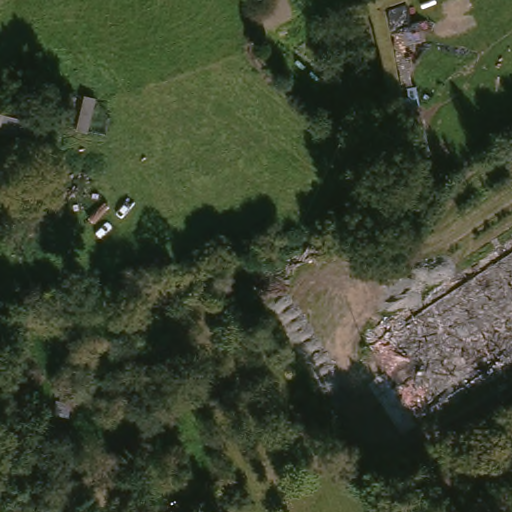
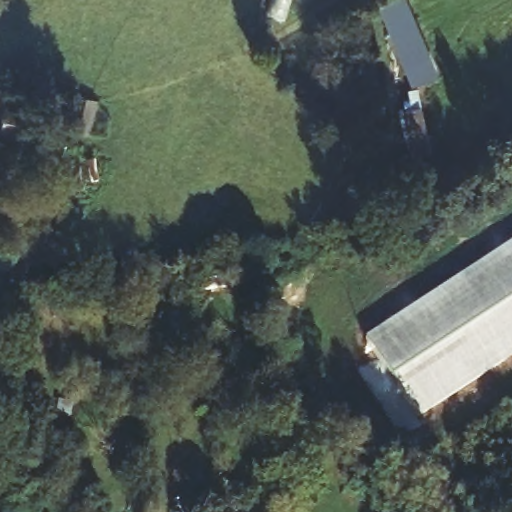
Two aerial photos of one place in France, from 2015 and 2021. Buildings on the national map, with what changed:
unchanged [(60,137),(65,139),(64,146),(37,140),(6,133),(0,131),(0,93),(15,96),(46,105),(67,110),(60,137)]
new [(512,242),(512,358),(417,420),(364,338),(512,242)]

